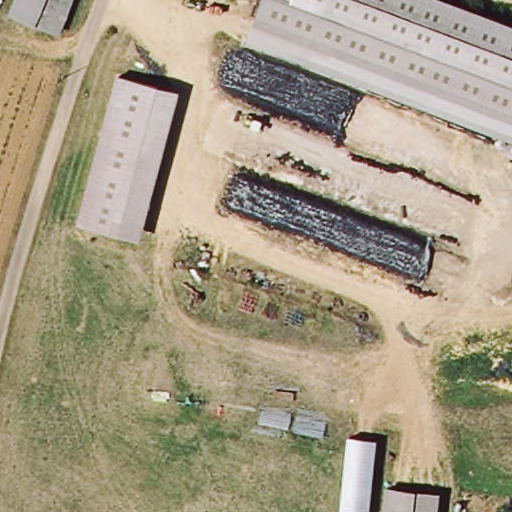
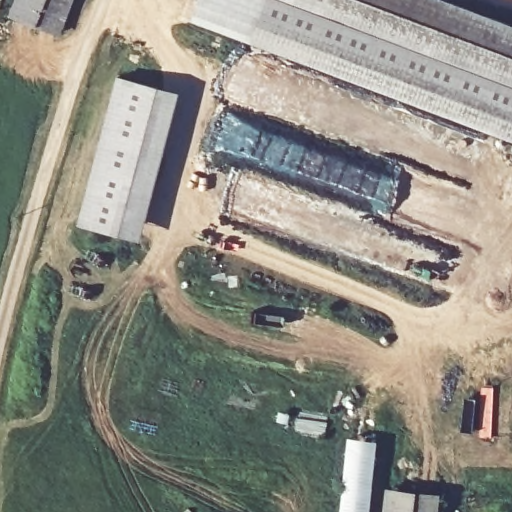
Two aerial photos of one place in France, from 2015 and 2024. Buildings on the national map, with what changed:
unchanged [(5,10),(10,0),(66,0),(53,30),(5,10)]
new [(253,40),(193,19),(200,0),(268,0),(255,31),(253,40)]
unchanged [(332,0),(369,14),(374,0),(461,0),(507,18),(512,20),(512,141),(253,40),(255,31),(268,0),(332,0)]
unchanged [(332,0),(374,0),(369,14),(332,0)]
unchanged [(138,245),(78,229),(116,82),(176,97),(138,245)]
unchanged [(348,436),(379,439),(371,512),(340,512),(348,436)]
unchanged [(443,512),(395,512),(399,485),(447,494),(443,512)]

